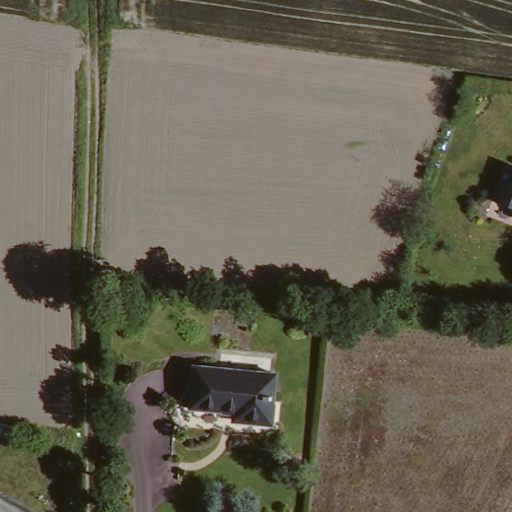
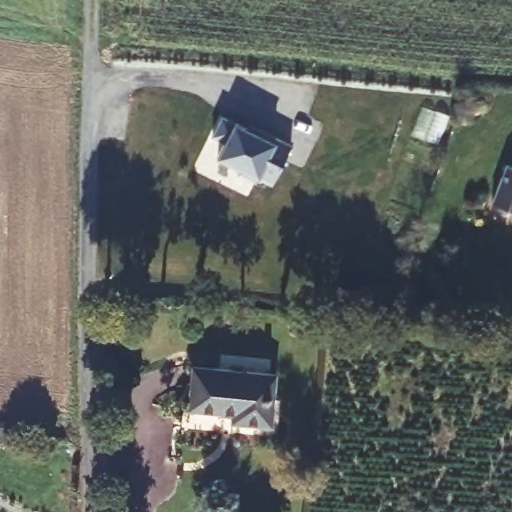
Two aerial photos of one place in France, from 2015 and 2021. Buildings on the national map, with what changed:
new [(273,184),(258,177),(256,181),(238,173),(240,168),(217,156),(225,140),(212,134),(221,114),(247,127),(249,123),(291,145),(273,184)]
unchanged [(505,171),(512,174),(512,217),(491,207),(505,171)]
unchanged [(358,304),(357,325),(329,325),(331,302),(358,304)]
unchanged [(265,428),(227,424),(228,417),(187,414),(191,374),(269,380),(265,428)]

